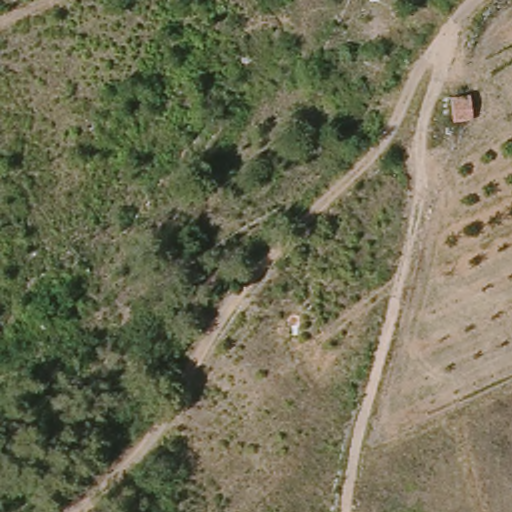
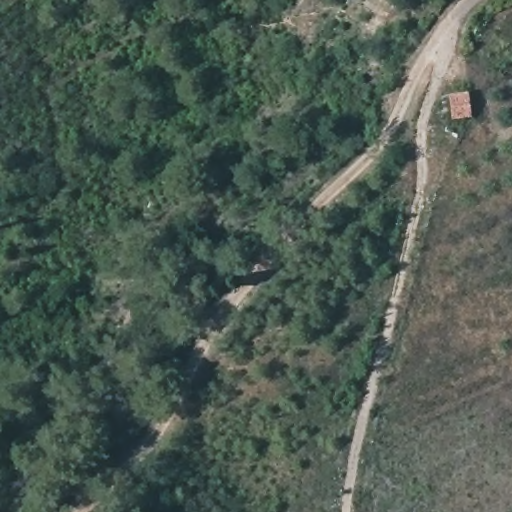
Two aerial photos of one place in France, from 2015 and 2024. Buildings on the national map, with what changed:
unchanged [(468,90),(470,116),(451,118),(449,92),(468,90)]

